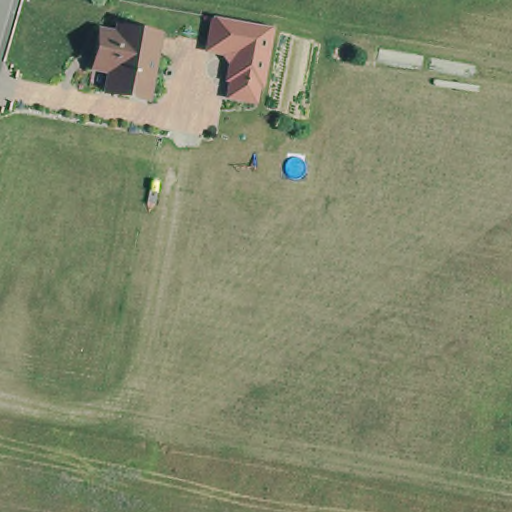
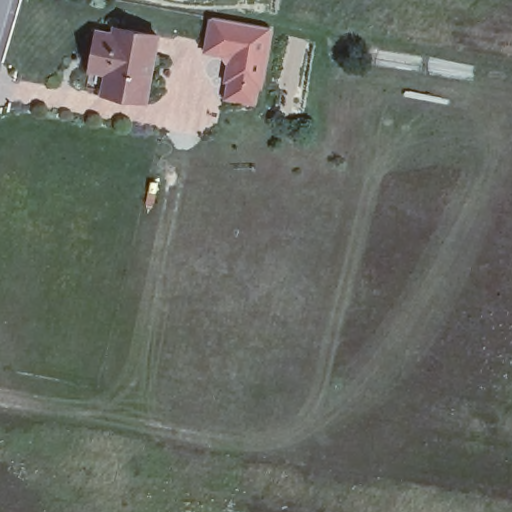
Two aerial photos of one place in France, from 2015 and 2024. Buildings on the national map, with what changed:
unchanged [(226,96),(229,80),(232,62),(223,49),(205,46),(211,17),(211,16),(269,27),(258,85),(255,84),(252,101),(226,96)]
unchanged [(97,58),(101,31),(119,34),(120,25),(161,33),(150,99),(108,91),(108,89),(112,71),(95,68),(97,58)]

